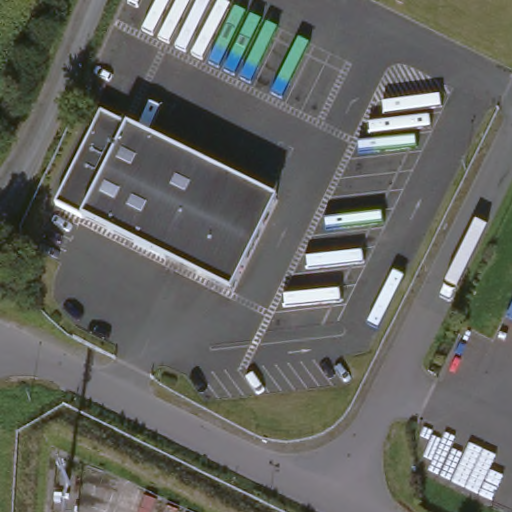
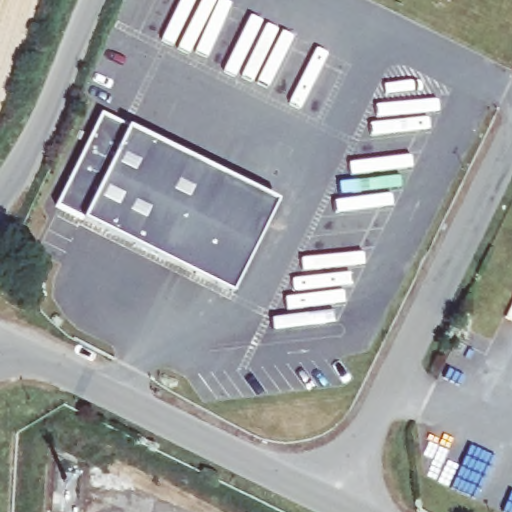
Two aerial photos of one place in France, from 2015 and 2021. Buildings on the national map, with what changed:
unchanged [(57,200),(102,109),(211,162),(166,255),(57,200)]
unchanged [(211,162),(276,194),(231,286),(166,255),(211,162)]

